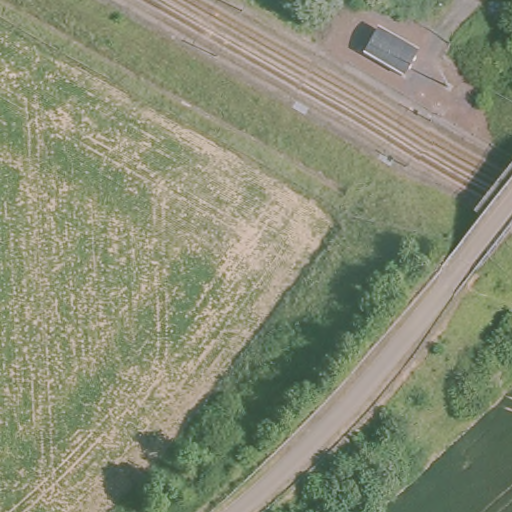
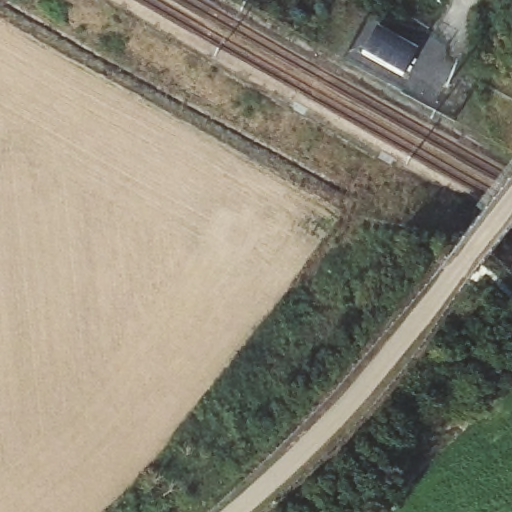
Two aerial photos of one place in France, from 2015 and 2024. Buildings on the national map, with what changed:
unchanged [(378,26),(419,49),(407,76),(363,56),(378,26)]

